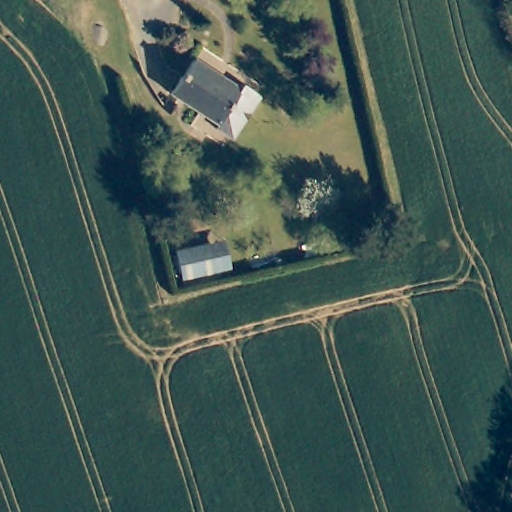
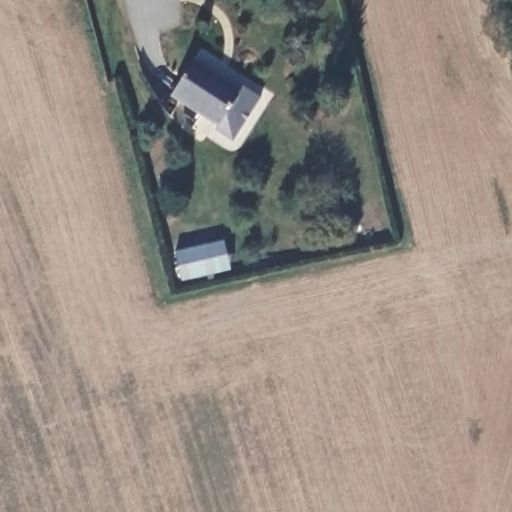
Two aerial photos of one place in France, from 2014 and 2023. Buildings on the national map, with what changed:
unchanged [(213,129),(215,125),(168,90),(192,55),(239,89),(242,85),(260,97),(242,122),(229,140),(213,129)]
unchanged [(173,252),(204,244),(220,240),(228,268),(212,272),(180,282),(173,252)]

